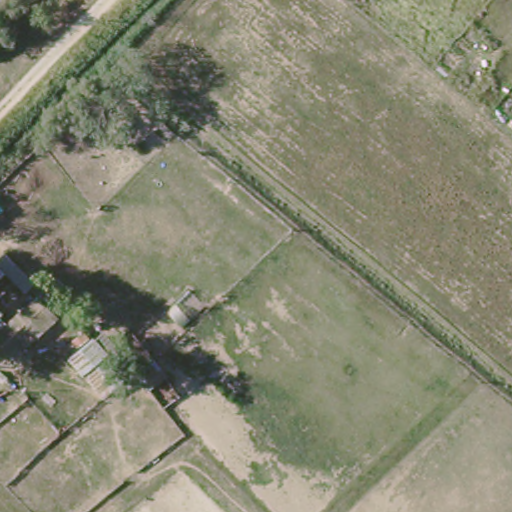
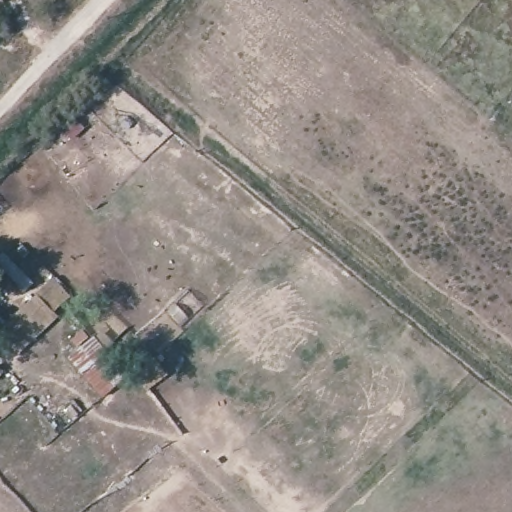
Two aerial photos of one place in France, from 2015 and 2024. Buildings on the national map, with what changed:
unchanged [(6,353),(0,347),(0,330),(37,295),(52,312),(6,353)]
unchanged [(128,376),(103,398),(68,359),(93,337),(128,376)]

